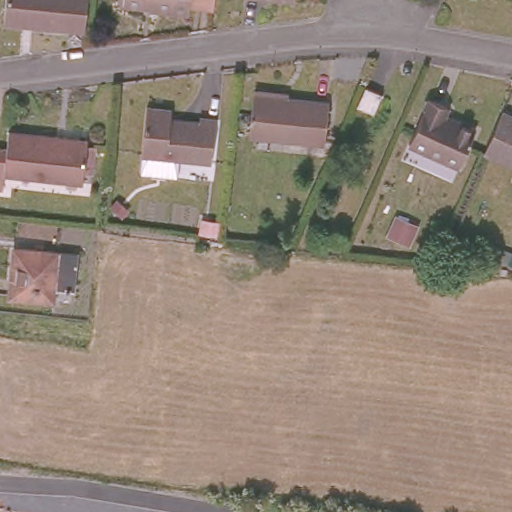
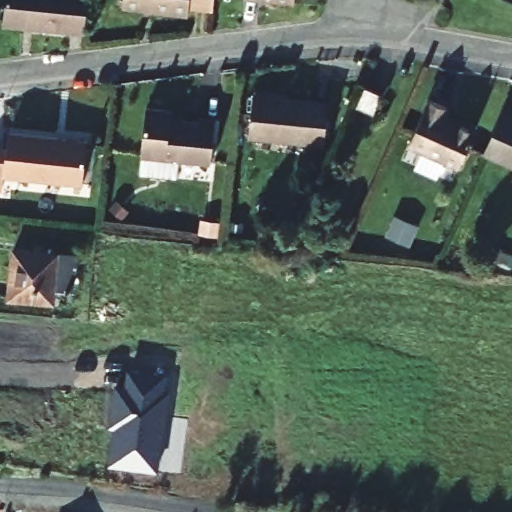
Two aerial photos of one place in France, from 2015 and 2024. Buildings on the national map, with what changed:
unchanged [(7,24),(8,17),(2,17),(3,0),(92,0),(89,32),(7,24)]
unchanged [(190,7),(189,14),(150,10),(150,5),(123,2),(124,0),(214,0),(213,10),(190,7)]
unchanged [(281,0),(295,0),(295,1),(281,0)]
unchanged [(382,94),(373,115),(355,106),(364,86),(382,94)]
unchanged [(275,94),(275,98),(329,104),(325,145),(248,138),(253,92),(275,94)]
unchanged [(447,107),(442,117),(475,131),(459,168),(407,145),(428,99),(447,107)]
unchanged [(172,110),(170,119),(198,121),(199,117),(216,120),(211,164),(140,157),(145,107),(172,110)]
unchanged [(482,153),(500,113),(512,118),(512,166),(482,153)]
unchanged [(87,184),(8,176),(7,189),(0,188),(0,149),(11,150),(13,133),(92,141),(87,184)]
unchanged [(218,221),(217,234),(200,232),(201,220),(218,221)]
unchanged [(512,253),(512,266),(490,257),(495,246),(512,253)]
unchanged [(69,256),(65,290),(48,288),(47,301),(3,297),(8,250),(69,256)]
new [(108,428),(114,383),(125,385),(127,369),(168,376),(166,392),(171,393),(158,473),(107,465),(113,430),(108,428)]

